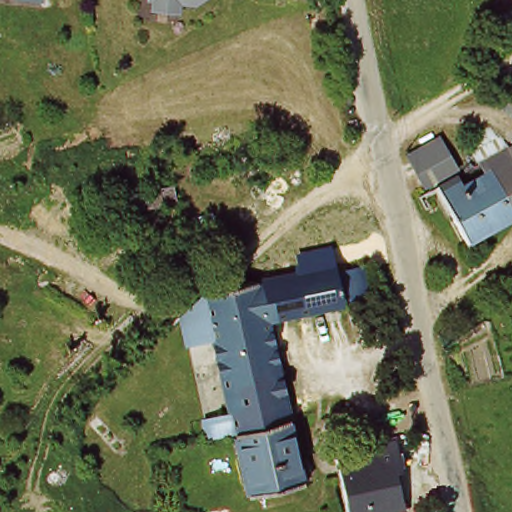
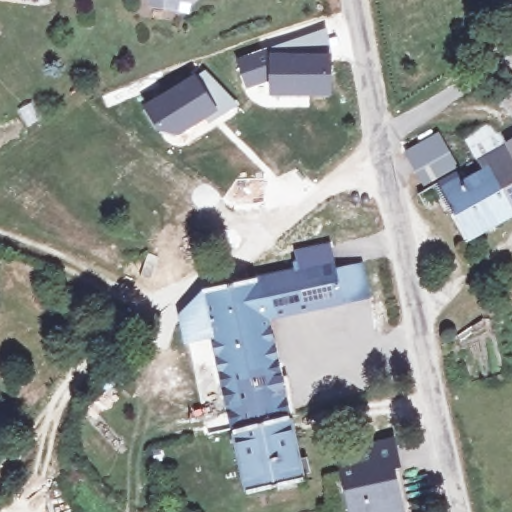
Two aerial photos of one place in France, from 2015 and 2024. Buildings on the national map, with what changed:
unchanged [(179,5),(156,2),(156,0),(179,0),(179,5)]
new [(326,26),(331,50),(332,96),(269,97),(269,82),(247,89),(236,57),(326,26)]
new [(217,115),(212,119),(178,137),(161,132),(160,133),(141,105),(196,72),(206,66),(239,104),(222,115),(219,117),(217,115)]
unchanged [(500,113),(512,104),(512,127),(500,113)]
unchanged [(411,155),(445,133),(457,154),(421,175),(413,164),(411,155)]
unchanged [(471,239),(440,186),(425,194),(420,184),(462,160),(475,181),(493,170),(489,161),(512,149),(512,215),(471,239)]
unchanged [(172,194),(177,210),(141,219),(135,202),(172,194)]
unchanged [(211,437),(210,432),(207,420),(235,413),(214,321),(184,328),(180,308),(207,287),(330,257),(335,267),(367,262),(375,297),(275,319),(297,417),(274,423),(273,423),(239,431),(211,437)]
demolished [(132,369),(169,407),(145,432),(107,394),(132,369)]
unchanged [(273,423),(274,423),(297,417),(307,461),(314,458),(318,474),(309,476),(310,483),(255,494),(239,431),(273,423)]
unchanged [(393,454),(404,502),(381,508),(381,512),(358,512),(342,452),(384,442),(393,454)]

